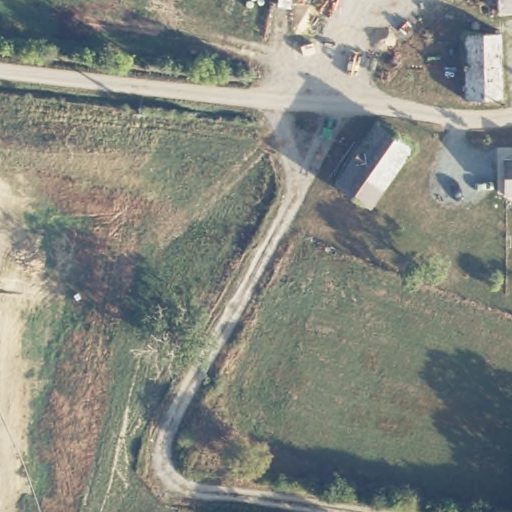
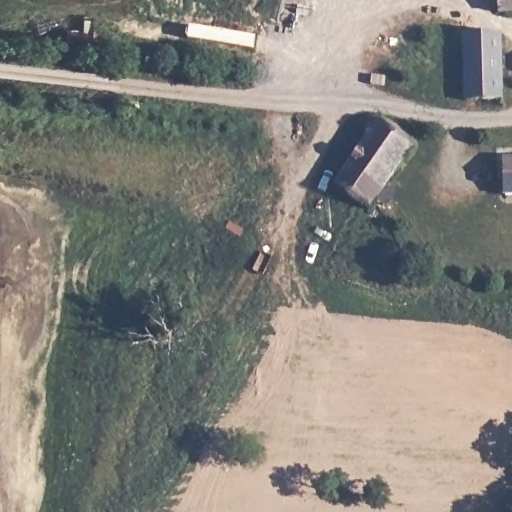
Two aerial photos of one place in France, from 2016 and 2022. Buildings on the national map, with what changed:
unchanged [(504,0),(512,0),(512,8),(504,7),(504,0)]
unchanged [(456,96),(456,29),(475,30),(475,96),(456,96)]
unchanged [(510,31),(510,96),(475,96),(475,30),(510,31)]
unchanged [(340,181),(380,119),(414,140),(371,205),(340,181)]
unchanged [(507,157),(512,157),(512,192),(506,192),(507,157)]

